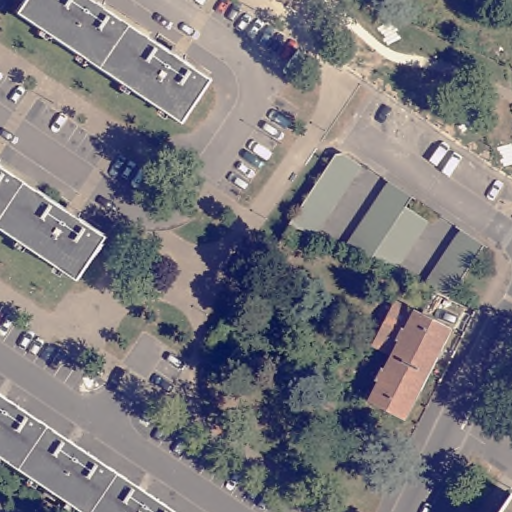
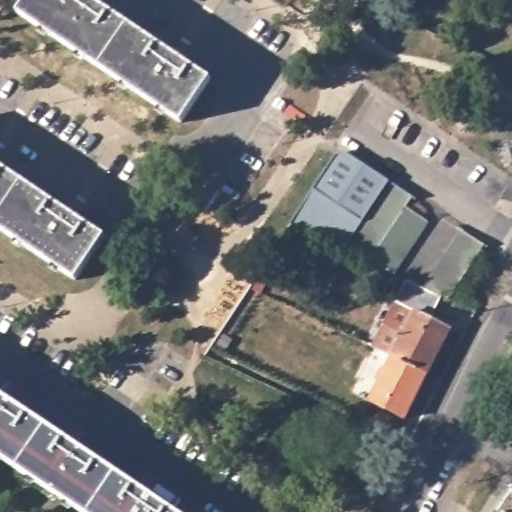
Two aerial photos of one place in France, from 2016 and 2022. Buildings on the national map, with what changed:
unchanged [(19,12),(27,0),(93,0),(211,80),(182,122),(19,12)]
unchanged [(336,156),(343,155),(358,165),(312,236),(290,226),(288,226),(336,156)]
unchanged [(0,166),(106,236),(77,280),(0,229),(0,166)]
unchanged [(406,191),(414,196),(407,206),(430,221),(397,273),(394,272),(347,250),(391,181),(406,191)]
unchanged [(482,244),(447,298),(422,287),(460,229),(482,244)]
unchanged [(427,374),(392,357),(401,340),(398,338),(402,329),(406,331),(415,311),(451,329),(427,374)]
unchanged [(406,418),(370,400),(380,382),(376,381),(381,372),(383,373),(392,357),(427,374),(406,418)]
unchanged [(0,395),(174,512),(80,512),(0,458),(0,395)]
unchanged [(505,512),(512,502),(512,512),(505,512)]

